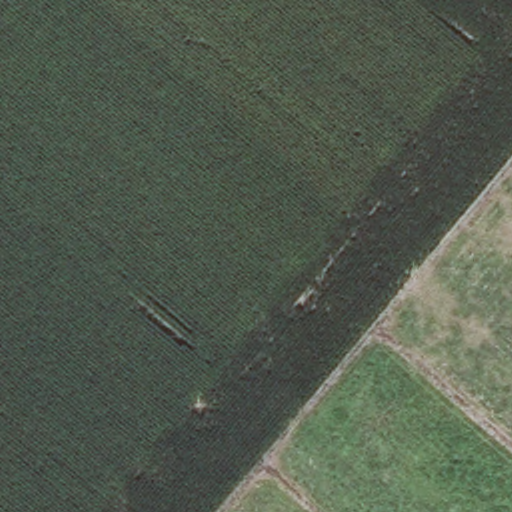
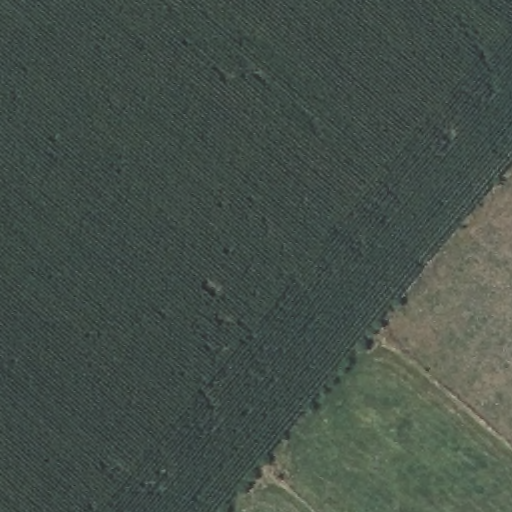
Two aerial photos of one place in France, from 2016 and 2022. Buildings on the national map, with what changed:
[]

